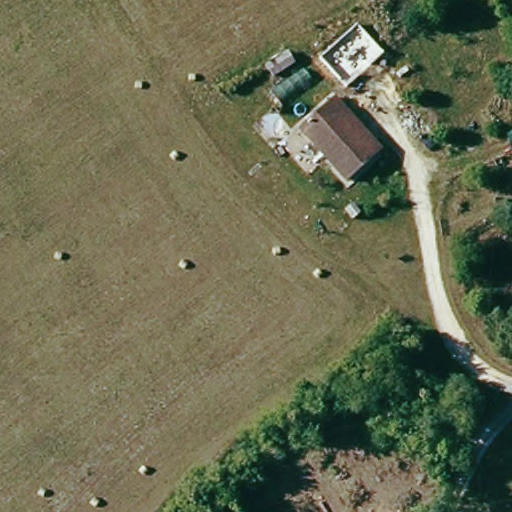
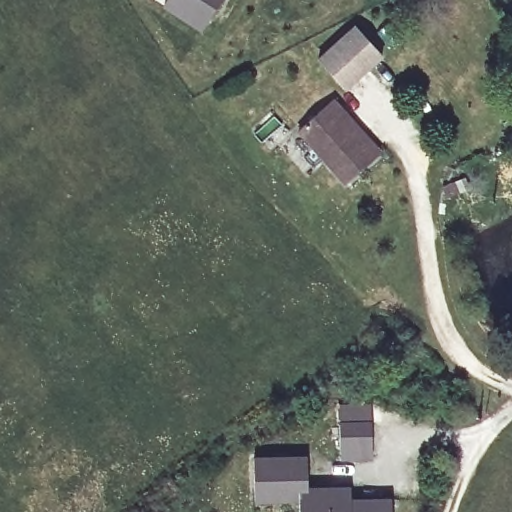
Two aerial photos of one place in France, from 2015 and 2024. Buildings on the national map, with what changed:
new [(202,34),(162,7),(166,0),(224,0),(202,34)]
unchanged [(384,57),(345,91),(315,60),(354,24),(384,57)]
unchanged [(344,185),(297,132),(332,101),(378,154),(344,185)]
new [(372,460),(340,460),(340,422),(371,421),(372,460)]
new [(308,487),(350,486),(351,499),(392,498),(392,512),(299,512),(299,500),(254,501),(252,459),(308,457),(308,487)]

